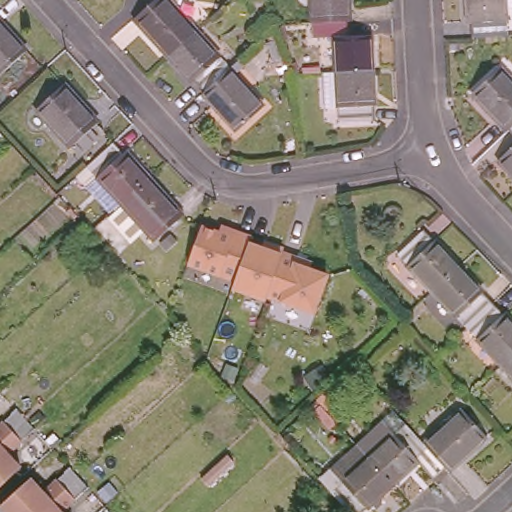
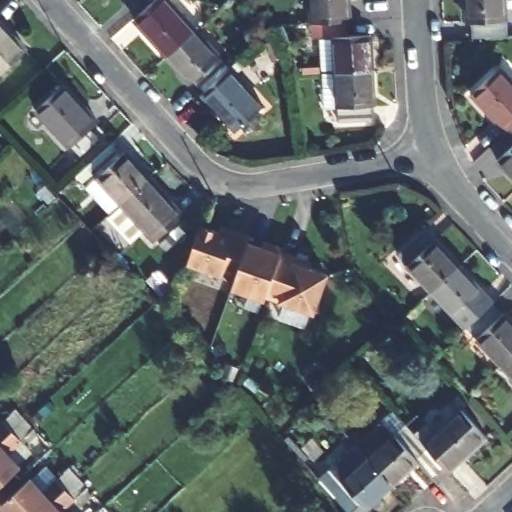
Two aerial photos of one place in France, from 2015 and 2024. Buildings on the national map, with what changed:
unchanged [(195,27),(167,53),(135,17),(150,2),(152,0),(170,0),(195,27)]
unchanged [(150,2),(148,0),(152,0),(150,2)]
unchanged [(310,0),(348,0),(350,22),(346,22),(311,25),(310,0)]
unchanged [(506,32),(497,34),(470,37),(469,22),(466,22),(464,0),(503,0),(506,32)]
unchanged [(1,75),(0,73),(0,15),(31,48),(1,75)]
unchanged [(346,22),(347,37),(372,36),(375,71),(336,74),(335,39),(312,40),(311,25),(346,22)]
unchanged [(202,87),(192,76),(190,77),(167,53),(195,27),(229,63),(202,87)]
unchanged [(504,127),(467,87),(496,62),(512,80),(512,118),(505,125),(504,127)]
unchanged [(263,101),(235,127),(211,99),(201,89),(202,87),(229,63),(263,101)]
unchanged [(375,71),(376,86),(376,106),(374,107),(375,122),(341,125),(340,110),(324,111),(322,75),(336,74),(375,71)]
unchanged [(100,124),(72,150),(38,112),(67,87),(100,124)]
unchanged [(512,118),(512,133),(505,125),(512,118)]
unchanged [(494,156),(512,139),(512,176),(494,156)]
unchanged [(91,167),(115,144),(126,155),(127,154),(151,179),(125,205),(91,167)]
unchanged [(185,217),(157,241),(125,205),(151,179),(185,217)]
unchanged [(405,262),(396,252),(422,228),(432,239),(434,238),(458,265),(430,291),(405,262)]
unchanged [(197,229),(227,238),(229,232),(247,238),(245,244),(246,245),(265,251),(267,245),(281,249),(280,253),(282,254),(298,260),(296,266),(325,276),(312,313),(266,298),(265,297),(264,301),(230,290),(232,282),(185,267),(197,229)]
unchanged [(481,290),(481,291),(491,302),(465,326),(454,313),(452,315),(430,291),(458,265),(481,290)]
unchanged [(491,302),(500,311),(502,311),(512,322),(512,350),(497,363),(472,336),(474,335),(465,326),(491,302)]
unchanged [(497,363),(512,350),(512,379),(497,363)]
unchanged [(418,440),(457,406),(482,432),(456,457),(444,468),(418,440)]
unchanged [(23,417),(0,439),(0,419),(13,407),(23,417)]
unchanged [(0,439),(23,417),(32,427),(5,453),(9,457),(17,467),(0,482),(0,439)]
unchanged [(444,468),(447,472),(435,482),(432,480),(415,460),(389,485),(364,457),(390,432),(392,433),(403,423),(418,440),(444,468)]
unchanged [(361,507),(354,512),(346,512),(331,495),(327,492),(339,482),(337,480),(364,457),(389,485),(362,508),(361,507)]
unchanged [(0,507),(0,502),(27,477),(38,489),(66,465),(76,476),(37,512),(5,512),(0,507)]
unchanged [(58,511),(59,512),(37,512),(76,476),(86,486),(58,511)]

